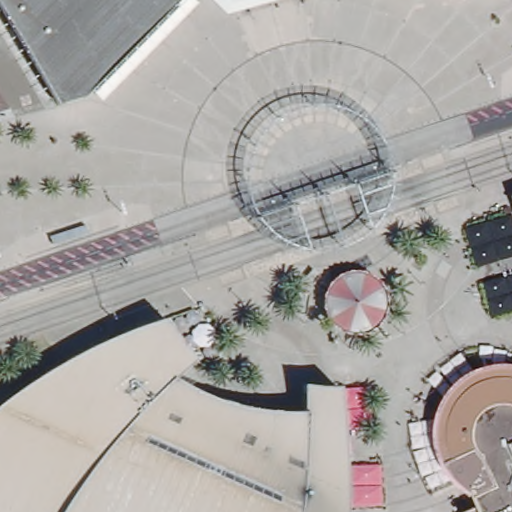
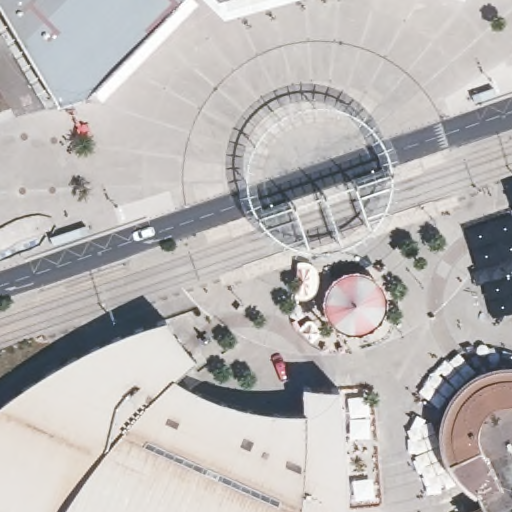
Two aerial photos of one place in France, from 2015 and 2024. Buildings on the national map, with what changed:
unchanged [(54,105),(0,15),(0,0),(175,0),(88,90),(54,105)]
unchanged [(202,0),(257,0),(212,13),(202,0)]
unchanged [(259,411),(279,413),(298,414),(298,387),(312,389),(332,389),(334,389),(335,396),(336,405),(337,413),(339,431),(340,439),(341,457),(342,466),(342,475),(343,483),(343,492),(343,501),(343,510),(343,512),(0,512),(0,401),(24,385),(36,377),(54,365),(80,351),(93,345),(100,342),(106,339),(160,320),(168,334),(177,346),(191,360),(170,380),(192,392),(214,400),(236,407),(259,411)]
unchanged [(451,505),(435,487),(425,463),(423,445),(427,421),(437,402),(450,386),(466,376),(490,368),(512,368),(512,512),(456,512),(451,505)]

